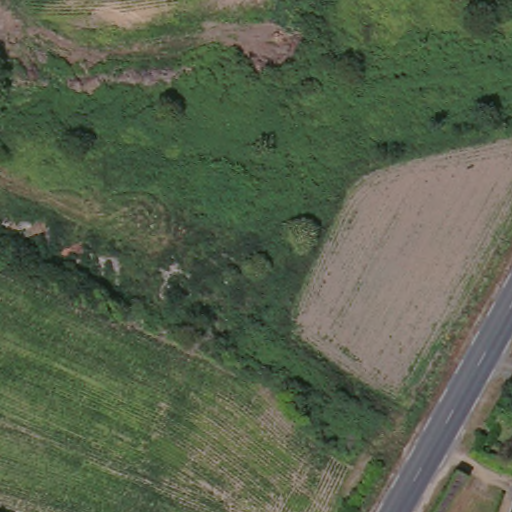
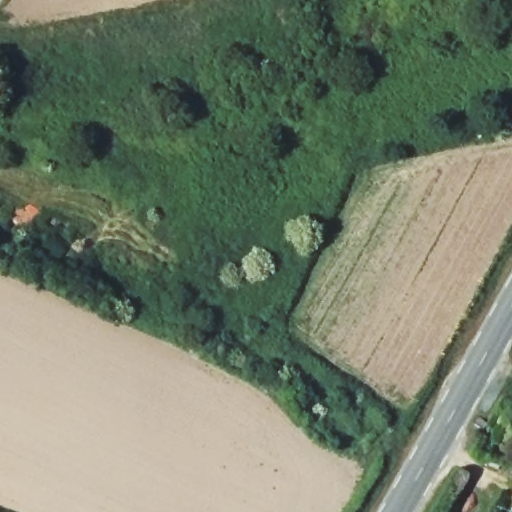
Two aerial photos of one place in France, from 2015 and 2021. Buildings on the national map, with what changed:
unchanged [(512,512),(509,512),(512,505),(512,512)]

